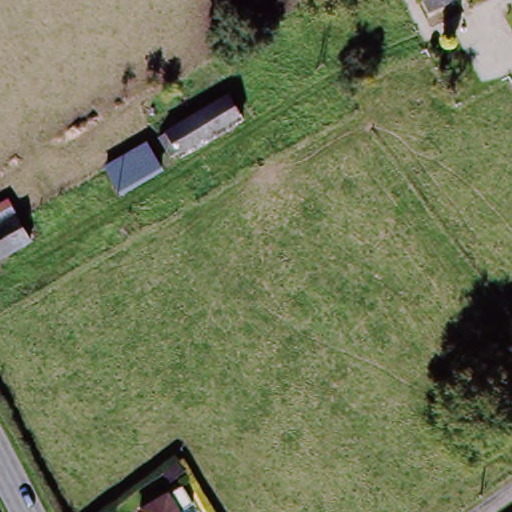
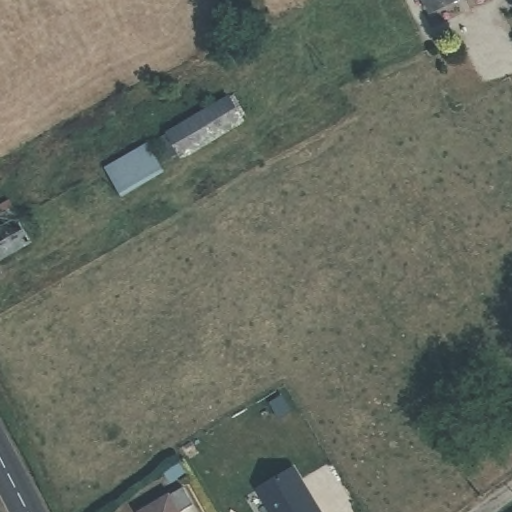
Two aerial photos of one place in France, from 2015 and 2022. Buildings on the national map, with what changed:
unchanged [(423,0),(459,0),(430,14),(423,0)]
unchanged [(157,138),(167,133),(232,94),(247,119),(181,158),(179,155),(170,160),(157,138)]
unchanged [(132,154),(142,173),(113,189),(103,170),(132,154)]
unchanged [(30,244),(0,261),(0,226),(15,217),(30,244)]
new [(271,512),(260,491),(295,471),(318,512),(271,512)]
unchanged [(183,488),(193,505),(180,512),(139,512),(169,495),(183,488)]

